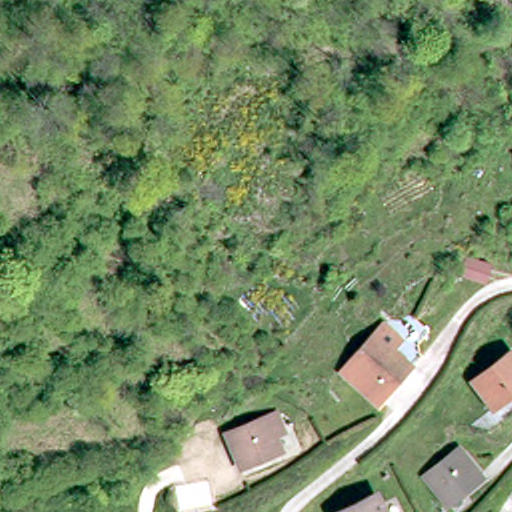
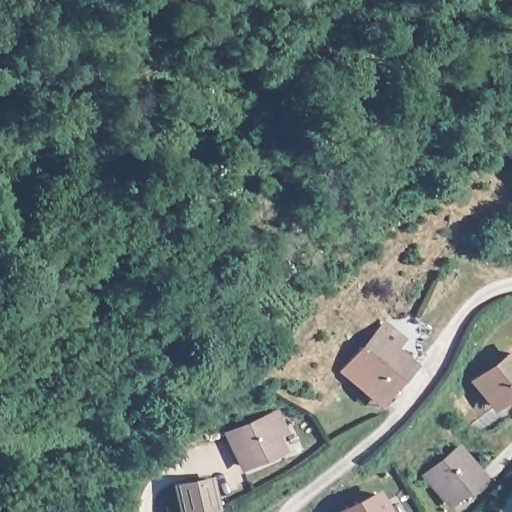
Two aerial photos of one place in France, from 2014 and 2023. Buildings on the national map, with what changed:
unchanged [(376,325),(384,332),(400,315),(417,331),(402,347),(409,353),(381,383),(349,353),(376,325)]
unchanged [(512,383),(493,399),(474,377),(508,348),(512,353),(512,383)]
unchanged [(381,383),(366,400),(332,372),(349,353),(381,383)]
unchanged [(228,435),(272,413),(278,427),(280,432),(271,435),(277,448),(243,465),(243,463),(228,435)]
unchanged [(477,474),(446,499),(425,475),(457,450),(477,474)]
new [(213,484),(215,512),(176,512),(173,488),(213,484)]
unchanged [(343,512),(374,495),(383,512),(343,512)]

